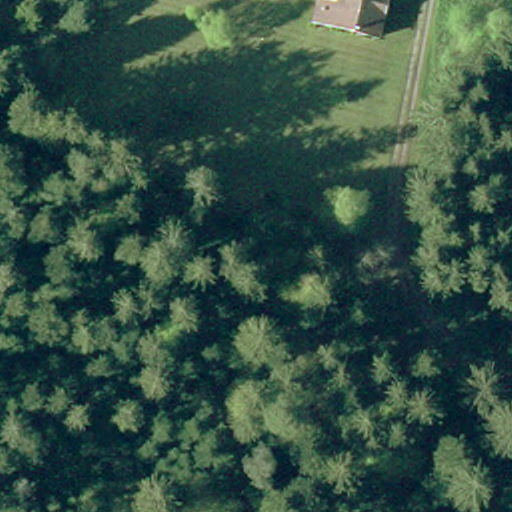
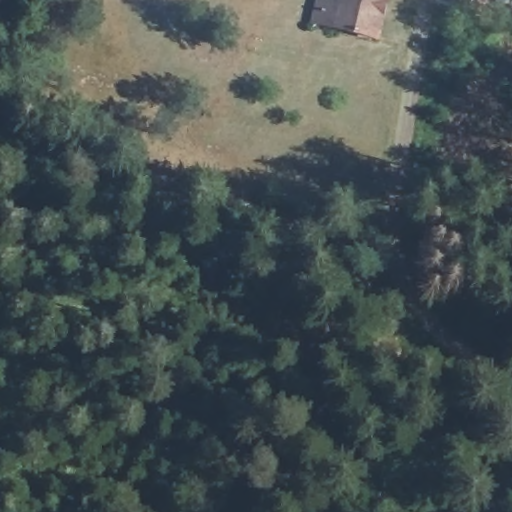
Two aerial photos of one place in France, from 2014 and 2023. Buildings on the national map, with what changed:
unchanged [(377,40),(318,24),(324,0),(387,0),(377,40)]

